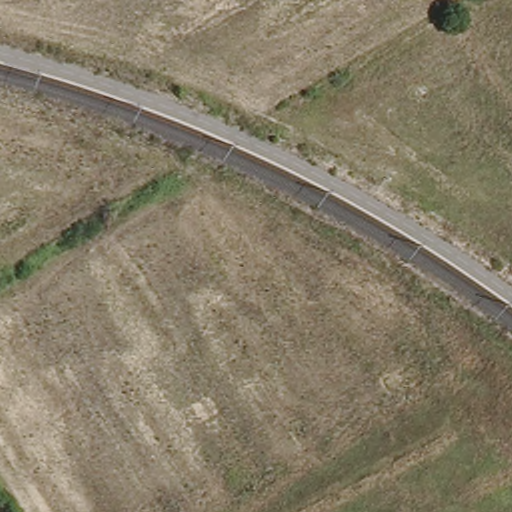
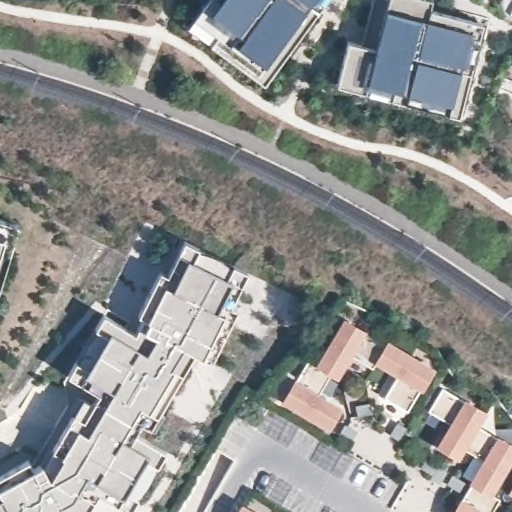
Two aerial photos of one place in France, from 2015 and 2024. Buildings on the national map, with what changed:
new [(261,68),(311,0),(325,0),(264,84),(187,27),(193,18),(261,68)]
new [(193,18),(207,0),(311,0),(261,68),(193,18)]
new [(368,20),(373,0),(392,0),(472,20),(482,23),(472,64),(462,105),(336,74),(344,41),(362,45),(368,20)]
new [(336,74),(462,105),(459,116),(333,84),(336,74)]
new [(4,220),(0,225),(0,219),(4,220)]
new [(19,224),(11,250),(0,242),(0,225),(4,220),(19,224)]
new [(135,331),(143,315),(138,313),(158,271),(166,275),(184,237),(246,269),(228,305),(238,309),(212,360),(204,355),(191,351),(151,426),(142,421),(137,432),(167,447),(129,510),(94,493),(84,512),(0,512),(0,475),(29,460),(34,468),(39,464),(86,387),(66,373),(105,314),(135,331)]
new [(7,247),(0,255),(0,242),(7,247)]
new [(367,330),(363,336),(383,345),(386,340),(434,369),(420,391),(408,412),(404,410),(397,424),(380,416),(387,401),(384,398),(397,376),(375,363),(372,369),(351,357),(338,380),(331,375),(321,394),(343,407),(330,431),(282,402),(295,379),(297,381),(309,359),(315,365),(343,317),(367,330)]
new [(479,426),(512,445),(512,462),(491,496),(501,500),(494,512),(452,512),(480,460),(464,450),(459,460),(435,447),(448,422),(428,412),(442,390),(462,401),(464,399),(487,412),(479,426)]
new [(512,486),(512,496),(508,493),(512,486)]
new [(236,502),(253,512),(230,512),(236,502)]

